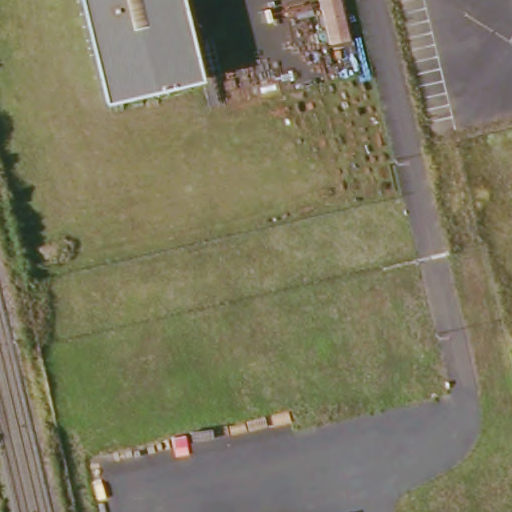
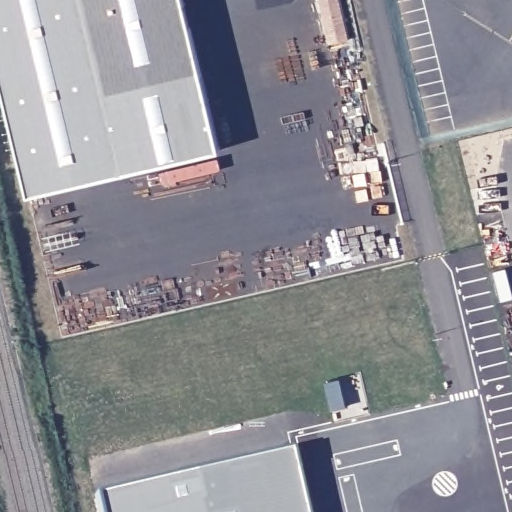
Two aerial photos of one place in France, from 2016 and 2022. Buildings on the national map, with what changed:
new [(0,84),(0,0),(85,0),(109,101),(203,79),(221,150),(28,197),(0,84)]
unchanged [(109,101),(85,0),(188,0),(206,78),(109,101)]
unchanged [(340,0),(348,39),(327,43),(317,0),(340,0)]
new [(269,64),(261,26),(318,14),(326,51),(269,64)]

